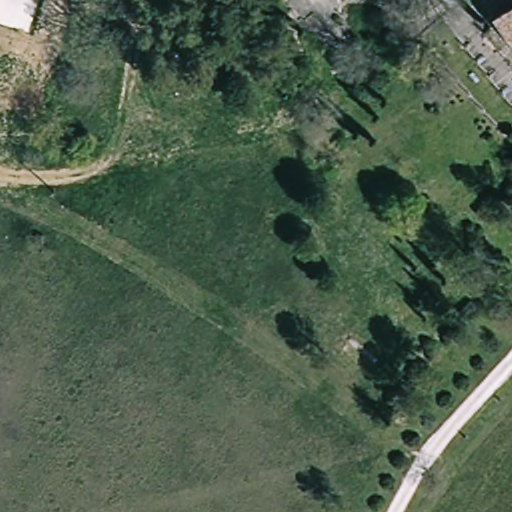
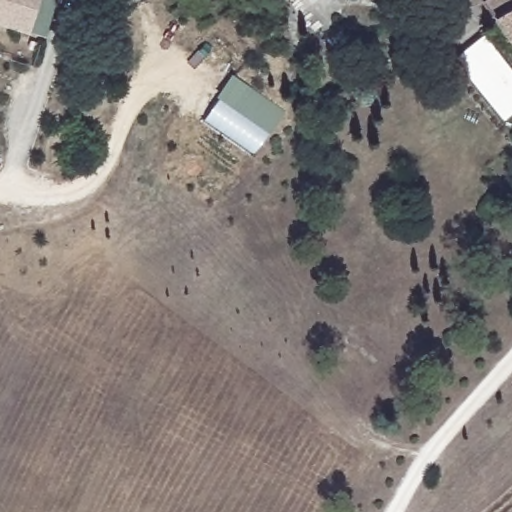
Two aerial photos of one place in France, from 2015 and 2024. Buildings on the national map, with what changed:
new [(0,25),(0,0),(57,0),(44,39),(0,25)]
unchanged [(480,0),(512,0),(512,2),(492,17),(480,0)]
unchanged [(492,17),(512,2),(512,41),(492,17)]
new [(232,75),(286,111),(270,134),(220,100),(216,96),(232,75)]
new [(270,134),(253,156),(204,121),(220,100),(270,134)]

